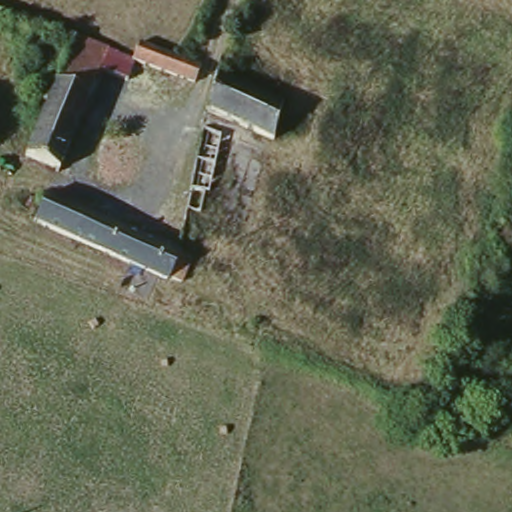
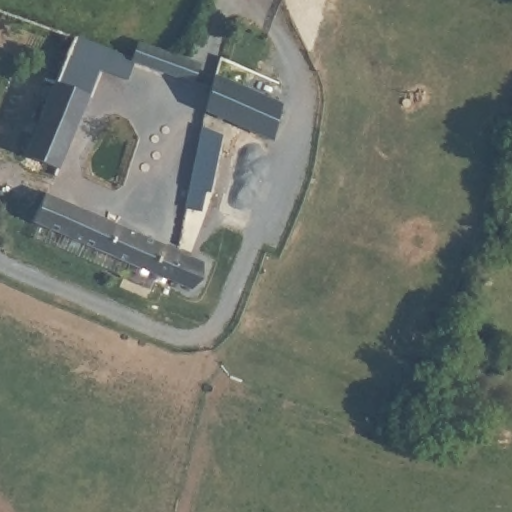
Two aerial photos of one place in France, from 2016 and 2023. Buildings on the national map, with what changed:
unchanged [(95,69),(87,96),(72,89),(84,64),(61,54),(67,39),(102,52),(95,69)]
unchanged [(187,86),(125,60),(134,39),(192,64),(187,86)]
unchanged [(72,89),(87,96),(55,173),(17,158),(40,106),(31,102),(38,83),(47,87),(61,54),(84,64),(72,89)]
unchanged [(205,109),(215,73),(282,102),(270,138),(205,109)]
unchanged [(192,189),(201,121),(222,126),(210,193),(192,189)]
unchanged [(32,219),(47,190),(51,191),(183,253),(169,282),(32,219)]

